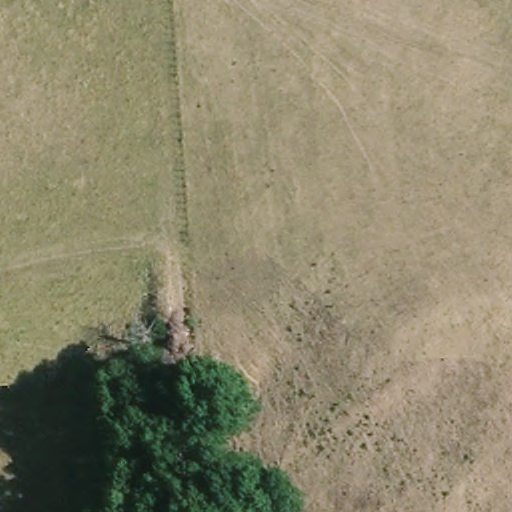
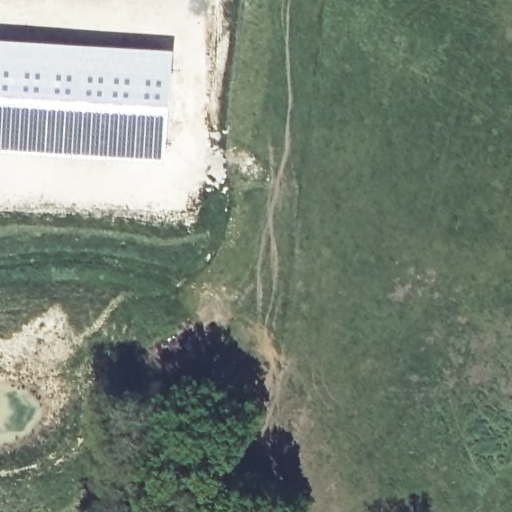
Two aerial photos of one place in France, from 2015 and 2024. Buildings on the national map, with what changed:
new [(165,159),(0,148),(0,37),(173,49),(165,159)]

